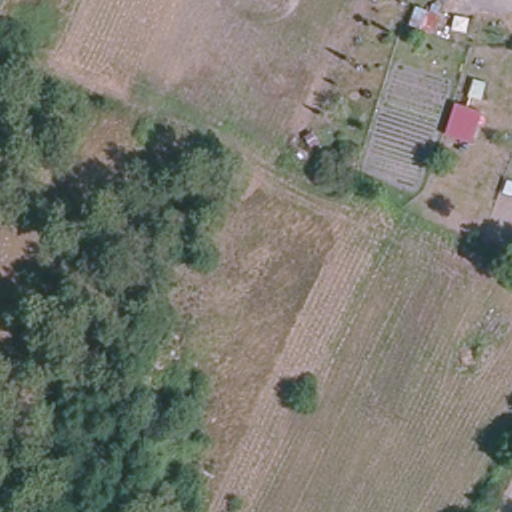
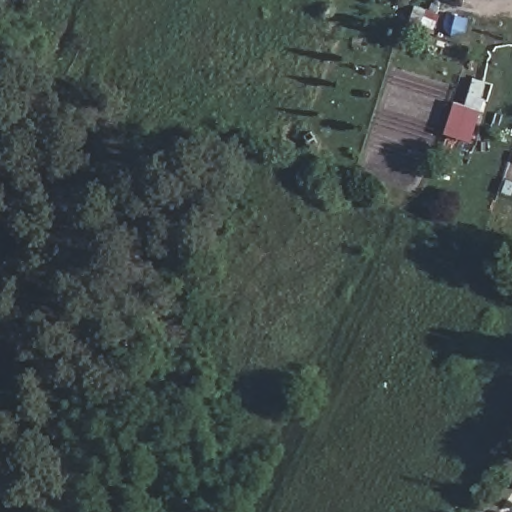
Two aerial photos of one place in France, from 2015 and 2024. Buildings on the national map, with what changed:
unchanged [(438,20),(433,33),(411,25),(416,13),(438,20)]
unchanged [(477,142),(450,134),(458,105),(485,114),(477,142)]

